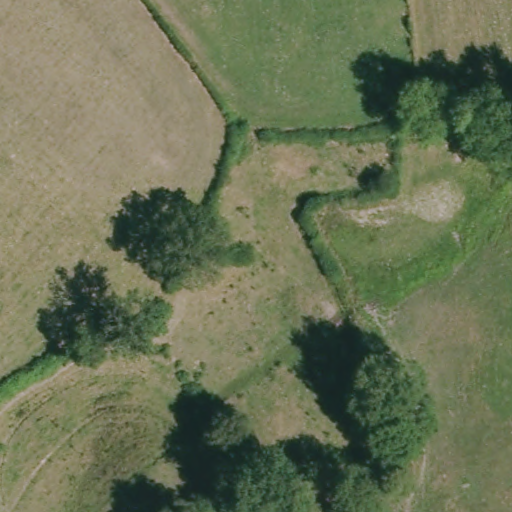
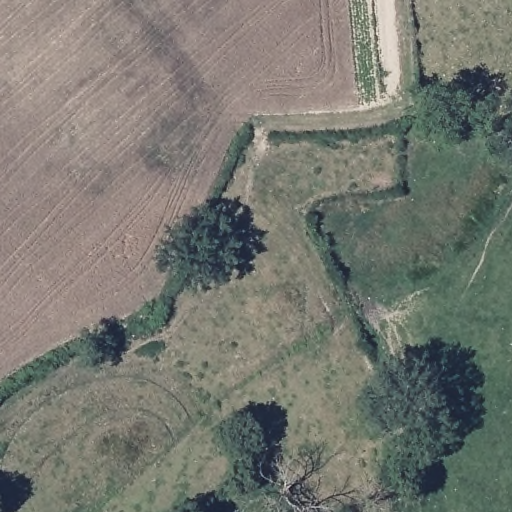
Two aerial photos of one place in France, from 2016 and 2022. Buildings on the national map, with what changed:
unchanged [(160,299),(172,304),(165,322),(150,316),(160,299)]

